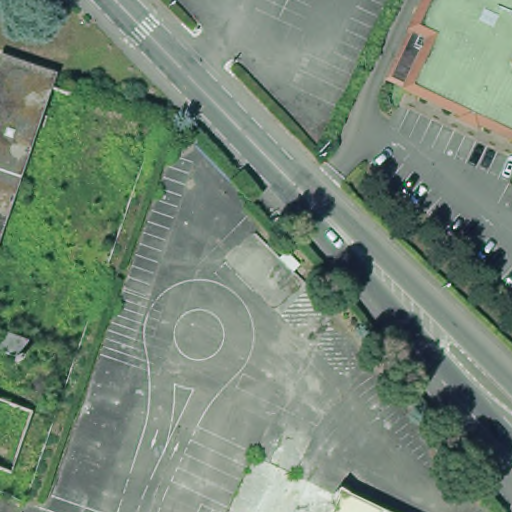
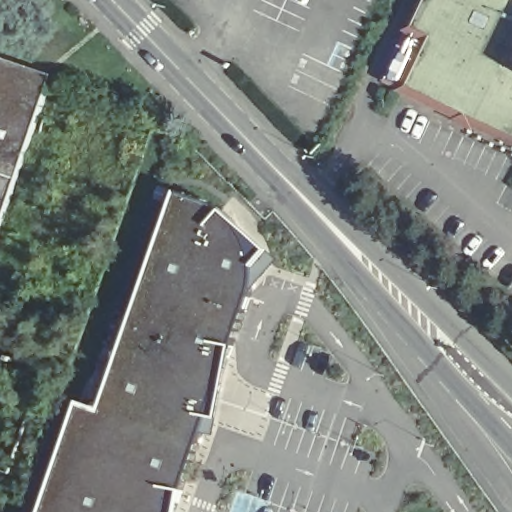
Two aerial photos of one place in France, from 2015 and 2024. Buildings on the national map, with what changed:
unchanged [(512,0),(512,138),(376,76),(414,0),(512,0)]
unchanged [(0,62),(43,76),(41,82),(5,193),(0,210),(0,62)]
unchanged [(21,198),(5,193),(41,82),(58,89),(21,198)]
new [(78,404),(100,412),(177,192),(191,196),(208,202),(220,209),(267,250),(253,267),(253,273),(252,287),(233,339),(218,419),(207,417),(182,489),(178,512),(41,512),(78,404)]
demolished [(275,463),(382,512),(250,512),(275,463)]

